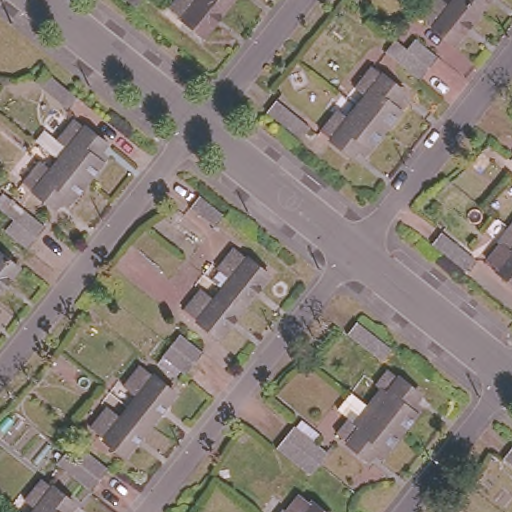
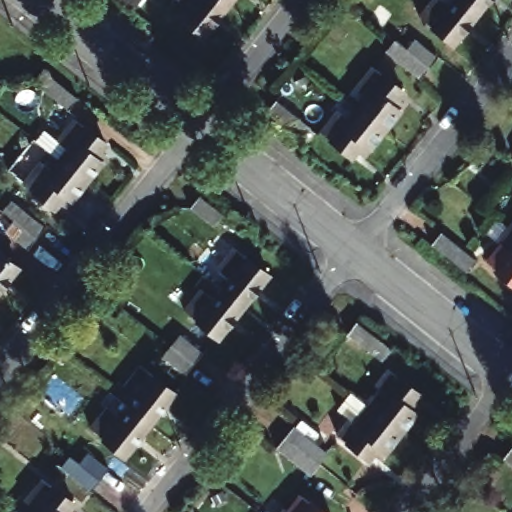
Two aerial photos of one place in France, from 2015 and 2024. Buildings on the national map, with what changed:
unchanged [(125,0),(139,0),(134,7),(125,0)]
unchanged [(203,35),(169,9),(176,0),(220,0),(227,5),(203,35)]
unchanged [(227,5),(220,0),(231,0),(227,5)]
unchanged [(419,16),(432,0),(441,0),(448,6),(453,0),(463,0),(477,12),(452,44),(419,16)]
unchanged [(477,12),(463,0),(487,0),(477,12)]
unchanged [(394,40),(405,50),(414,39),(436,57),(427,68),(420,78),(385,50),(394,40)]
unchanged [(44,71),(77,98),(68,109),(35,83),(44,71)]
unchanged [(355,111),(364,100),(355,92),(370,71),(402,97),(397,104),(402,108),(396,114),(399,116),(384,134),(355,111)]
unchanged [(307,127),(300,137),(267,111),(275,101),(307,127)]
unchanged [(367,151),(361,158),(355,154),(351,160),(320,135),(337,114),(346,121),(355,111),(384,134),(369,152),(367,151)]
unchanged [(62,153),(52,145),(69,123),(100,149),(95,156),(100,160),(97,166),(97,168),(82,186),(54,163),(62,153)]
unchanged [(65,205),(60,211),(55,206),(50,212),(18,188),(35,167),(45,175),(54,163),(82,186),(68,204),(65,205)]
unchanged [(198,196),(221,214),(212,225),(190,207),(198,196)]
unchanged [(5,230),(13,219),(2,209),(10,199),(45,227),(36,237),(27,248),(5,230)]
unchanged [(502,234),(512,222),(512,243),(502,234)]
unchanged [(465,269),(430,242),(440,232),(472,258),(465,269)]
unchanged [(490,275),(491,274),(482,266),(493,249),(491,248),(502,234),(512,243),(512,291),(511,292),(490,275)]
unchanged [(217,273),(234,252),(268,280),(243,311),(234,304),(222,294),(230,284),(217,273)]
unchanged [(0,295),(0,258),(18,272),(0,295)]
unchanged [(218,342),(184,315),(200,293),(214,304),(222,294),(234,304),(243,311),(218,342)]
unchanged [(380,359),(347,332),(355,322),(389,349),(380,359)]
unchanged [(162,356),(170,344),(179,334),(201,352),(193,362),(184,374),(162,356)]
unchanged [(379,388),(374,385),(387,369),(418,394),(412,402),(419,406),(414,412),(415,414),(400,432),(366,404),(379,388)]
unchanged [(122,391),(139,370),(174,397),(149,428),(127,411),(135,402),(122,391)]
unchanged [(385,449),(380,455),(374,451),(367,458),(336,432),(349,416),(354,420),(366,404),(400,432),(387,449),(385,449)]
unchanged [(149,428),(124,460),(89,432),(105,412),(119,422),(127,411),(149,428)]
unchanged [(310,474),(275,446),(284,435),(292,425),(327,452),(319,463),(310,474)]
unchanged [(502,458),(510,447),(512,448),(512,466),(502,458)]
unchanged [(84,450),(107,468),(99,479),(90,490),(57,463),(65,452),(76,461),(84,450)]
unchanged [(40,477),(73,503),(68,510),(70,512),(30,512),(35,506),(25,498),(40,477)]
unchanged [(303,507),(305,506),(312,512),(284,512),(294,500),(303,507)]

